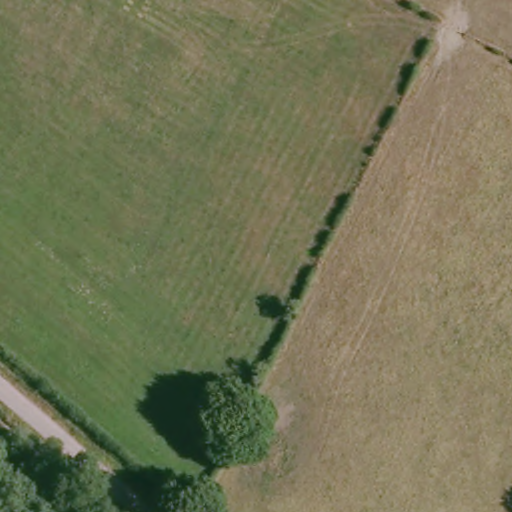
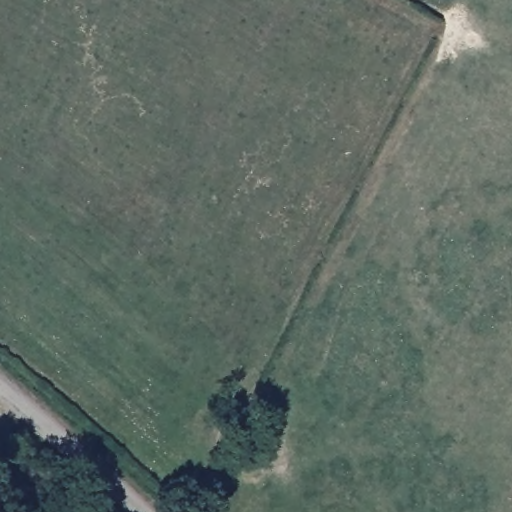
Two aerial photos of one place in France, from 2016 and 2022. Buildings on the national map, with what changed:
[]

